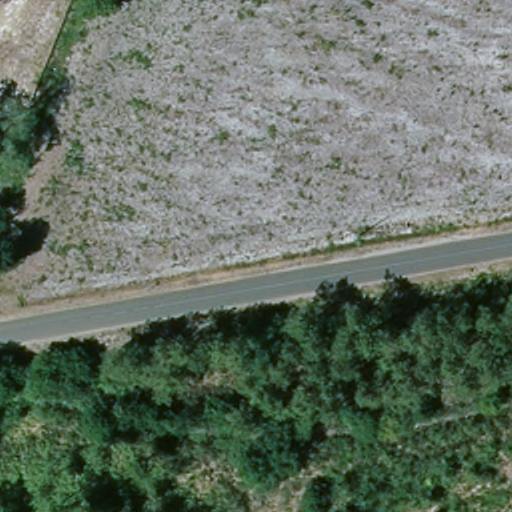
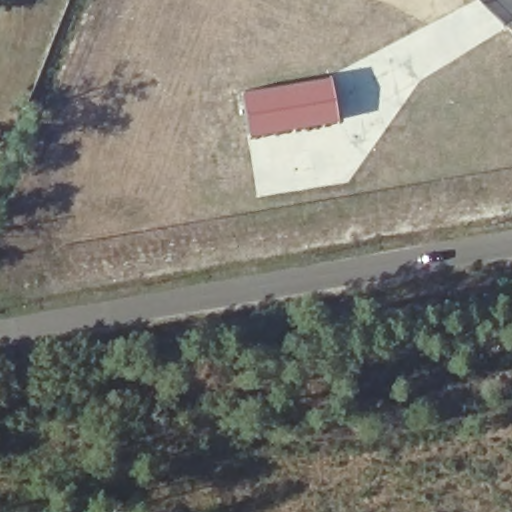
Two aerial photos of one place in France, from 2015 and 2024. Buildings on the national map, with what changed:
new [(333,82),(340,126),(250,142),(242,97),(333,82)]

